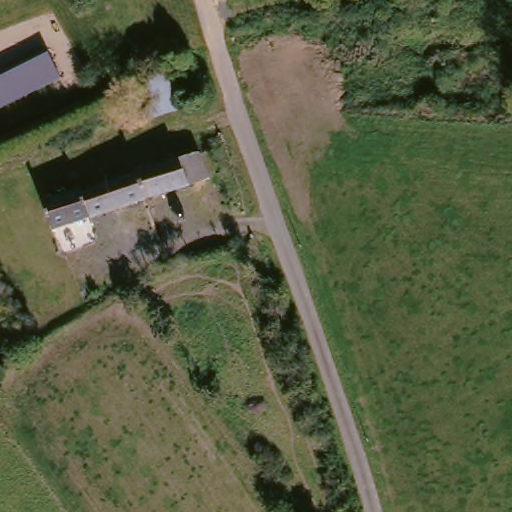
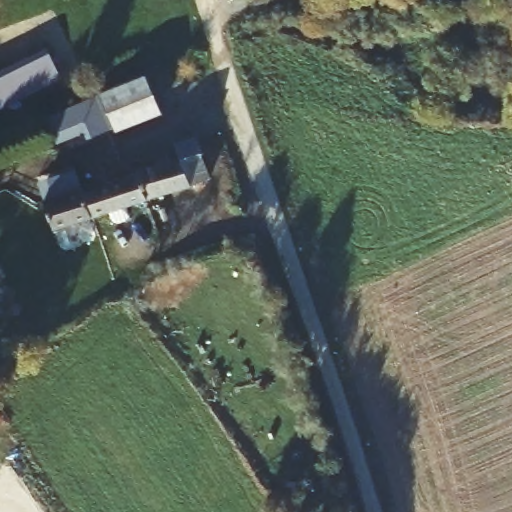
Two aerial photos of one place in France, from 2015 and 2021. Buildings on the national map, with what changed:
unchanged [(57,90),(0,114),(0,84),(46,66),(57,90)]
demolished [(196,111),(144,130),(129,86),(180,68),(196,111)]
new [(163,113),(115,132),(98,94),(145,74),(163,113)]
new [(79,134),(59,144),(47,118),(96,98),(110,132),(82,143),(79,134)]
unchanged [(198,182),(56,233),(46,200),(139,168),(187,152),(198,182)]

